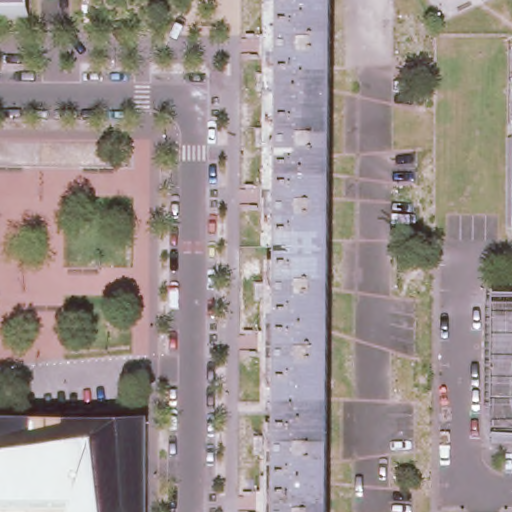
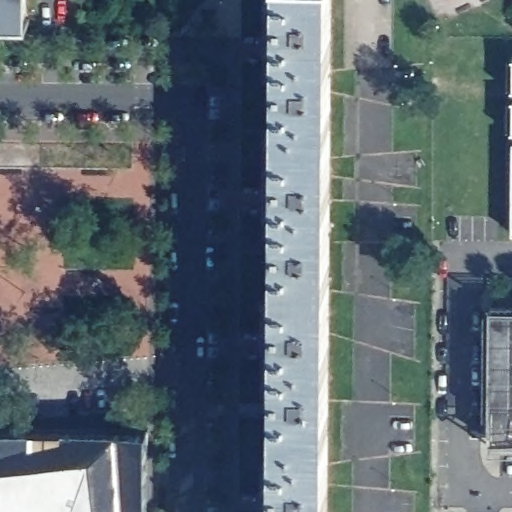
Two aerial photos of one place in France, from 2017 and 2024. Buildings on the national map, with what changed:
unchanged [(28,20),(0,19),(0,0),(26,0),(25,17),(29,17),(28,20)]
unchanged [(283,0),(332,0),(328,512),(278,512),(283,0)]
unchanged [(489,445),(488,377),(488,336),(489,314),(512,314),(512,445),(489,445)]
unchanged [(147,512),(0,512),(0,426),(147,427),(147,512)]

